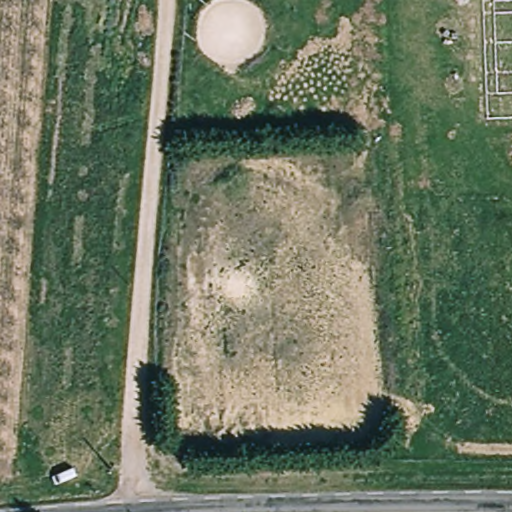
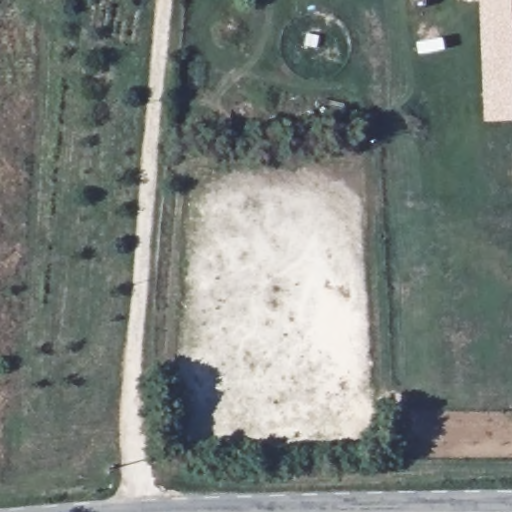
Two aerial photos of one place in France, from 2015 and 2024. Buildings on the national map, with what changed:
new [(486,116),(481,0),(512,0),(512,114),(486,116)]

